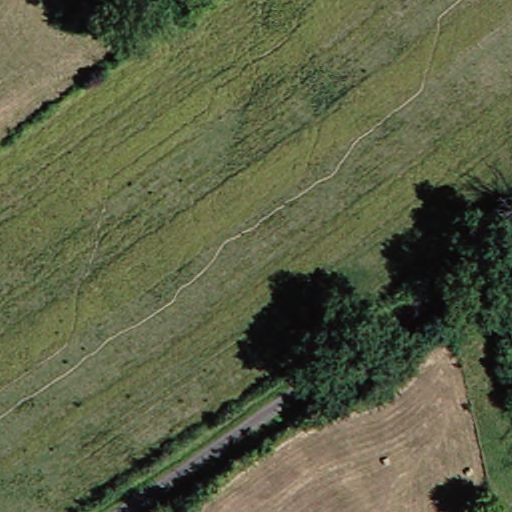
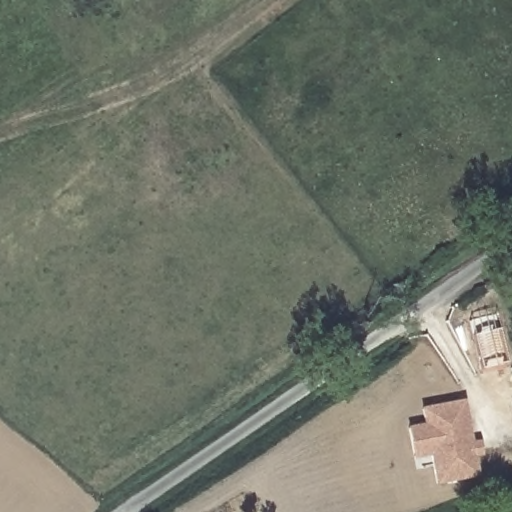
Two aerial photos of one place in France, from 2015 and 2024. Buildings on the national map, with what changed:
new [(480,477),(437,485),(431,458),(413,461),(406,426),(423,422),(422,408),(465,399),(480,477)]

